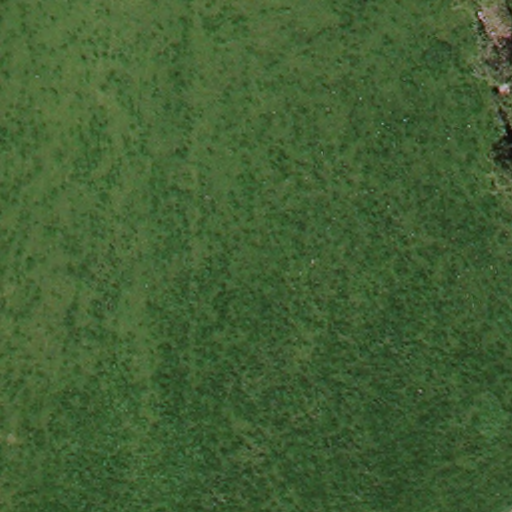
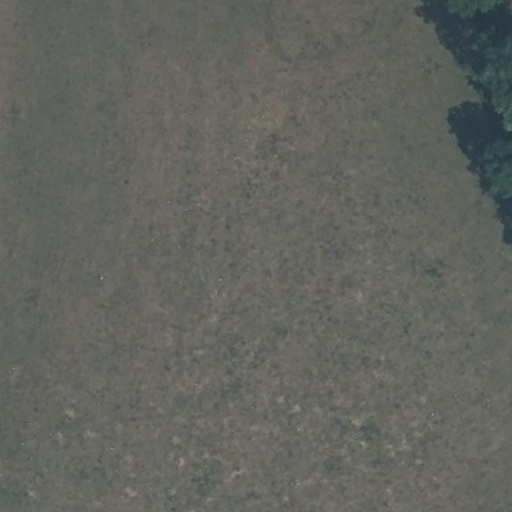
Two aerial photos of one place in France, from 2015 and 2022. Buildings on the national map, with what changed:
[]

